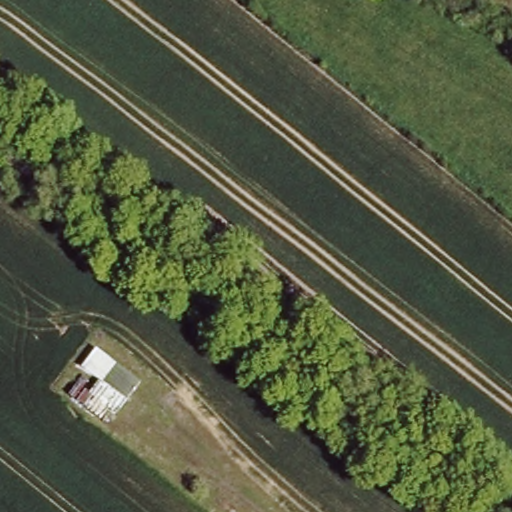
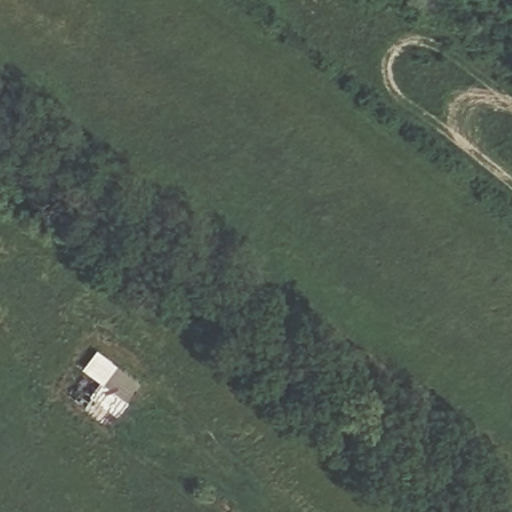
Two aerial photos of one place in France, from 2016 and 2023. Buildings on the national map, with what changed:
unchanged [(82,381),(97,392),(116,364),(142,383),(112,421),(74,392),(82,381)]

